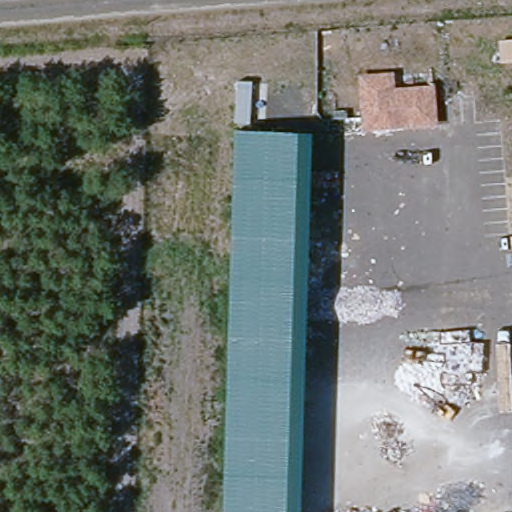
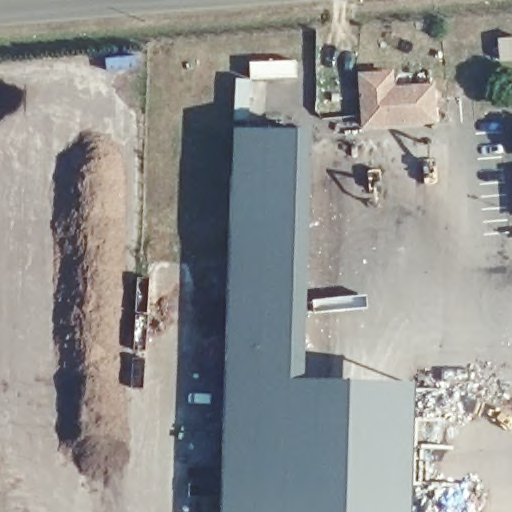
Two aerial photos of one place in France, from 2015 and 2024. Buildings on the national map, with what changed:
new [(252,77),(251,121),(236,121),(237,81),(251,81),(252,63),(298,64),(298,79),(252,77)]
unchanged [(359,74),(393,71),(396,85),(433,82),(438,122),(363,128),(359,74)]
unchanged [(234,128),(317,132),(304,512),(224,512),(234,128)]
new [(414,512),(304,512),(309,381),(418,385),(414,512)]

